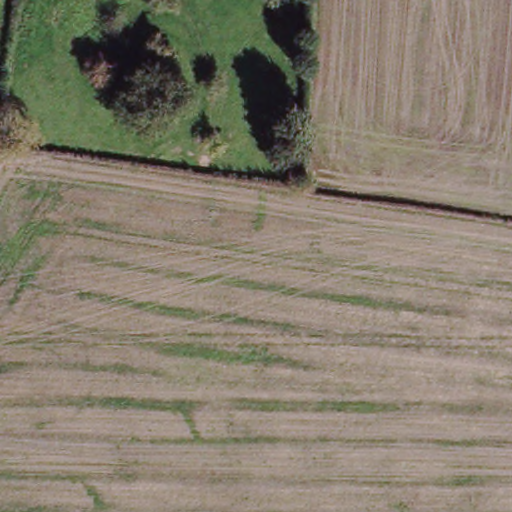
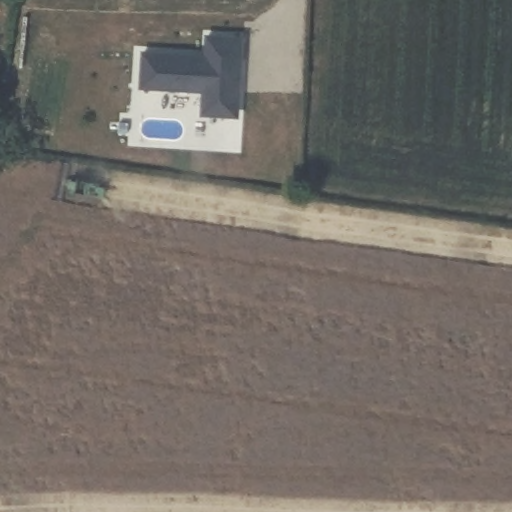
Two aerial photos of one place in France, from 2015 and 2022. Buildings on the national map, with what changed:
new [(145,51),(198,51),(201,54),(207,54),(207,32),(243,33),(242,87),(239,87),(238,110),(207,110),(208,87),(144,86),(145,51)]

